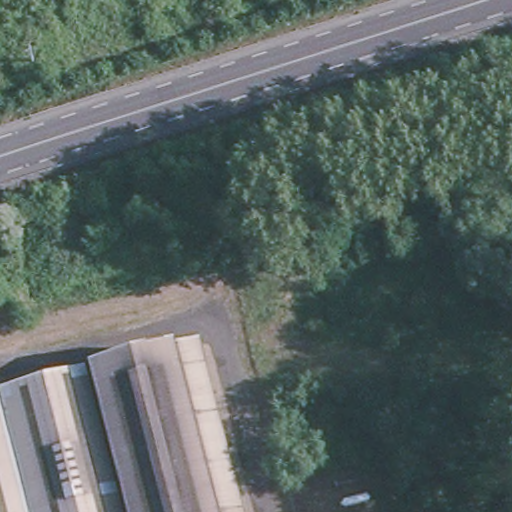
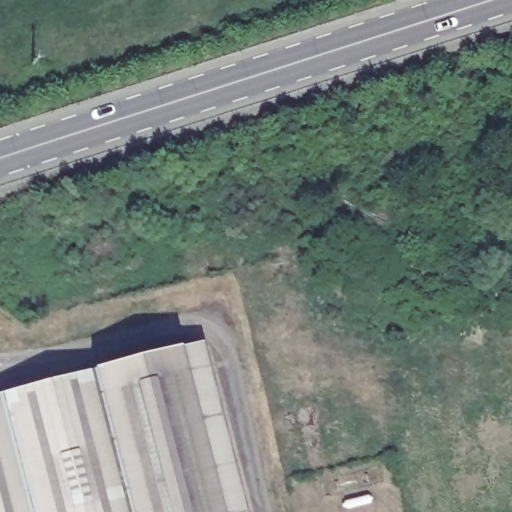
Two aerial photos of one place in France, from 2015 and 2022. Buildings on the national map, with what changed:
unchanged [(194,347),(237,512),(0,512),(0,397),(194,347)]

